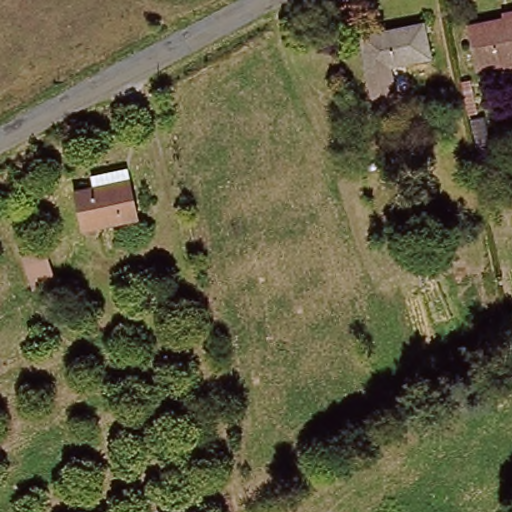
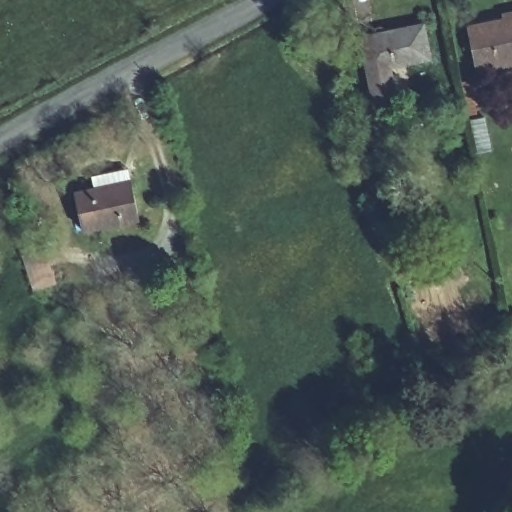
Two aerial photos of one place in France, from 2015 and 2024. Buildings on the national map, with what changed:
unchanged [(477,59),(470,17),(512,10),(512,52),(477,59)]
unchanged [(387,55),(393,95),(373,98),(362,30),(420,20),(425,48),(387,55)]
unchanged [(80,224),(73,189),(127,179),(134,215),(80,224)]

